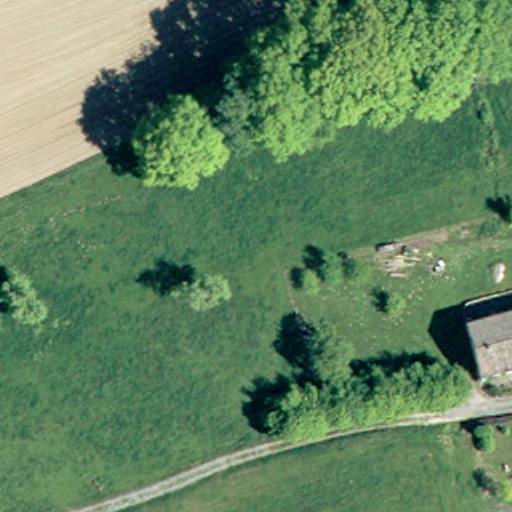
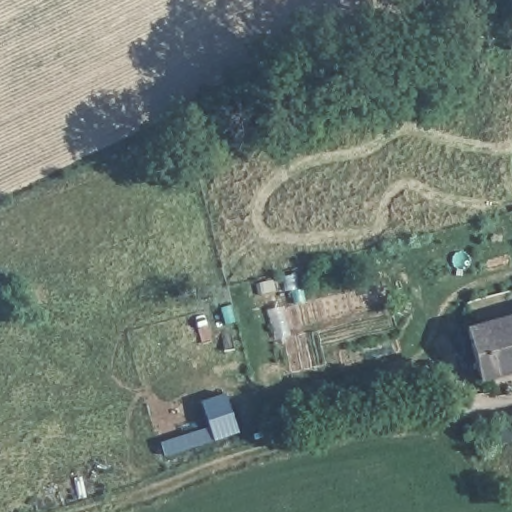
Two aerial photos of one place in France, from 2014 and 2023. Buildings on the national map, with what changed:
unchanged [(475,329),(512,320),(512,376),(489,382),(475,329)]
new [(207,426),(200,401),(225,392),(238,432),(164,455),(160,443),(207,426)]

